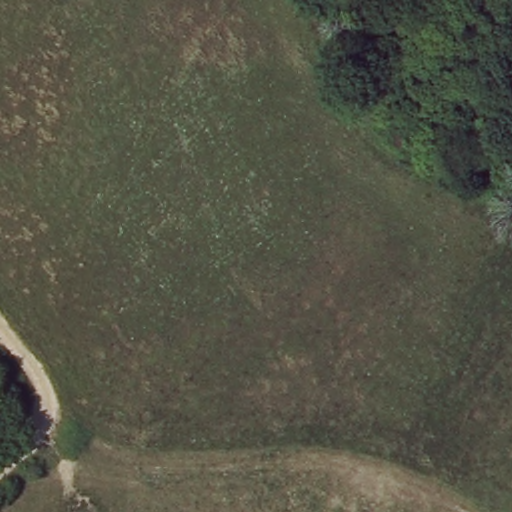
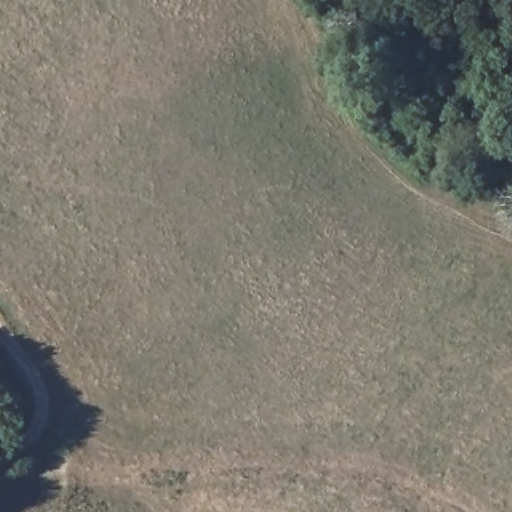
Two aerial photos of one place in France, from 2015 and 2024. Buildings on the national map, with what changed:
[]

